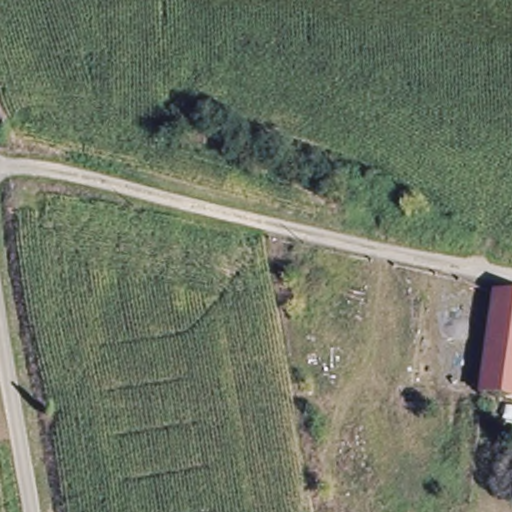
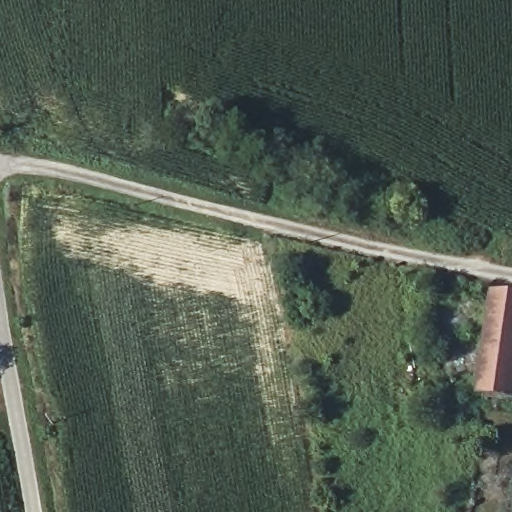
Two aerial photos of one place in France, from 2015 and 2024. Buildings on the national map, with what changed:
unchanged [(485,290),(512,294),(512,399),(471,393),(485,290)]

